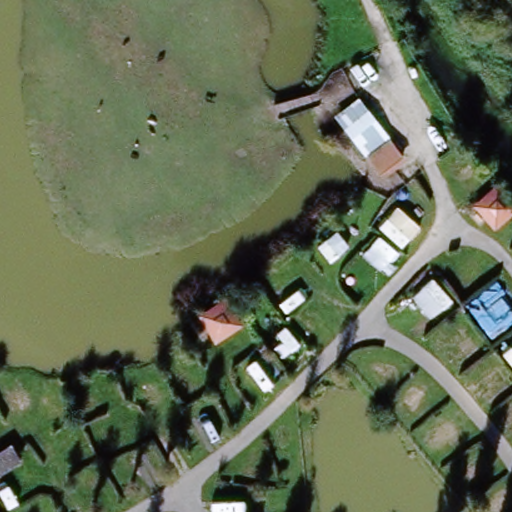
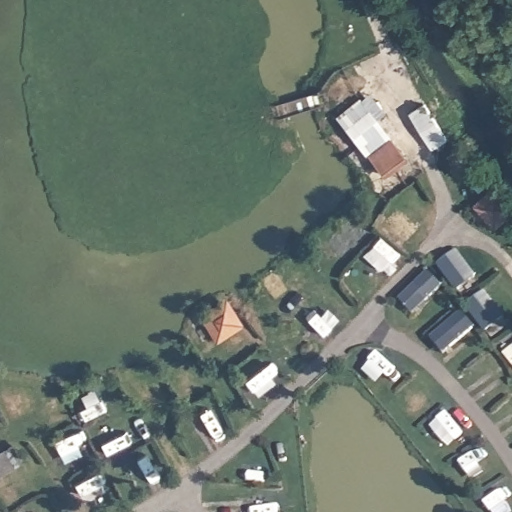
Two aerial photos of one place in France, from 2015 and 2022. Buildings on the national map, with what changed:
unchanged [(381,177),(330,118),(355,98),(405,156),(381,177)]

